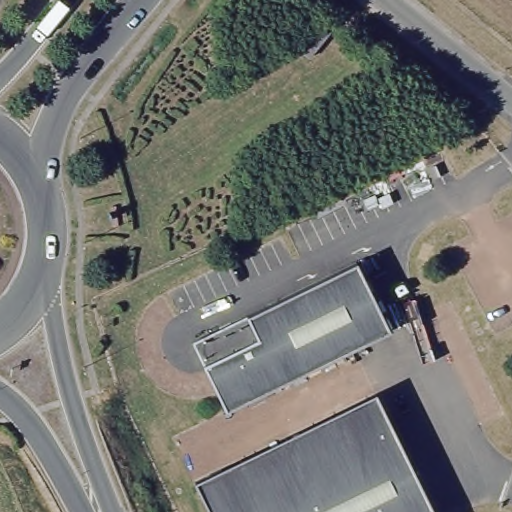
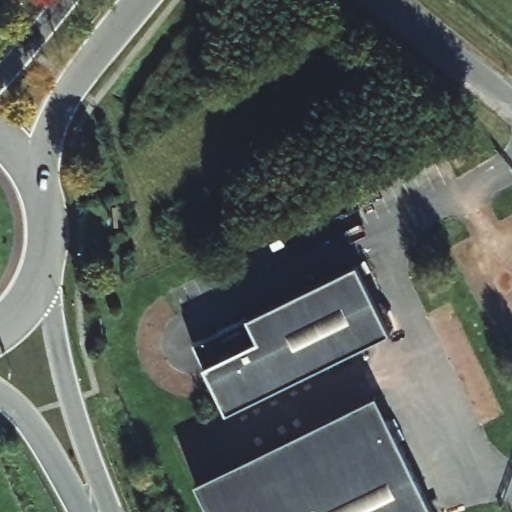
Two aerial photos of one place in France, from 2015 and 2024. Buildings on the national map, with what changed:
unchanged [(292,52),(308,33),(325,13),(335,21),(318,41),(303,60),(292,52)]
unchanged [(325,280),(363,263),(395,333),(365,346),(325,280)]
unchanged [(228,409),(207,362),(262,337),(251,315),(325,280),(365,346),(228,409)]
unchanged [(197,340),(251,315),(262,337),(207,362),(197,340)]
unchanged [(200,479),(384,395),(395,418),(210,502),(200,479)]
unchanged [(438,512),(214,512),(210,502),(395,418),(438,512)]

